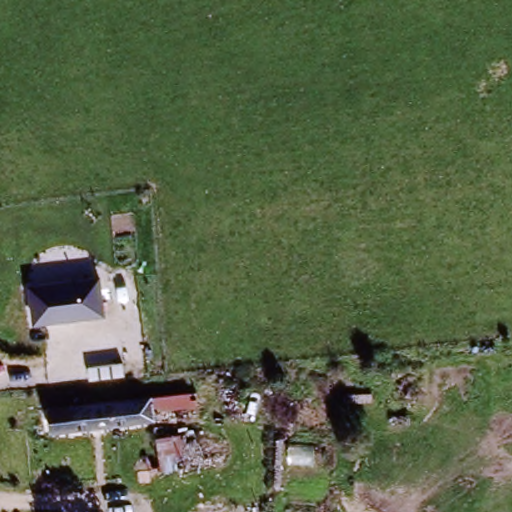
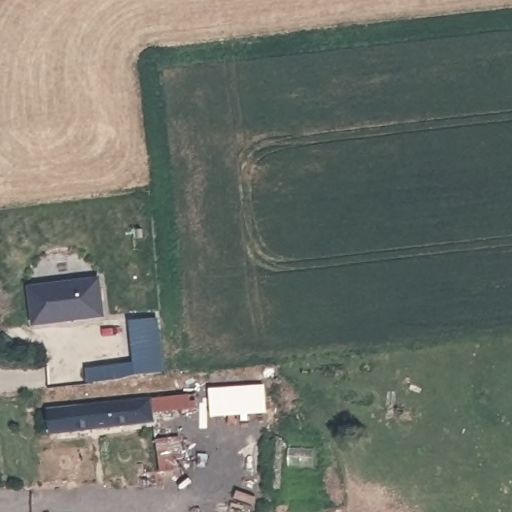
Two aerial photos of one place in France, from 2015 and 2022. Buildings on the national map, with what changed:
unchanged [(100,278),(106,318),(34,328),(28,287),(100,278)]
new [(128,321),(160,317),(166,374),(87,381),(86,367),(135,362),(128,321)]
unchanged [(58,437),(56,415),(158,404),(159,425),(58,437)]

